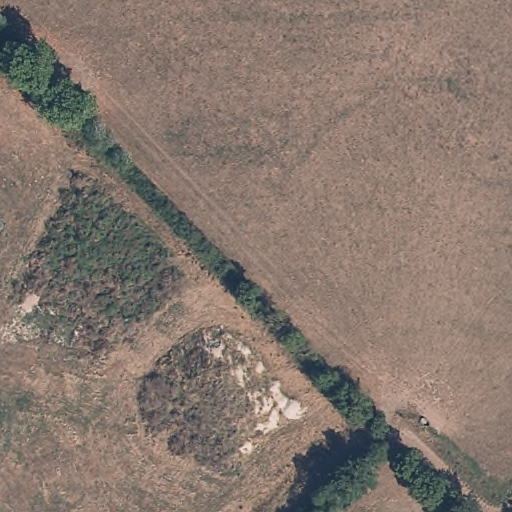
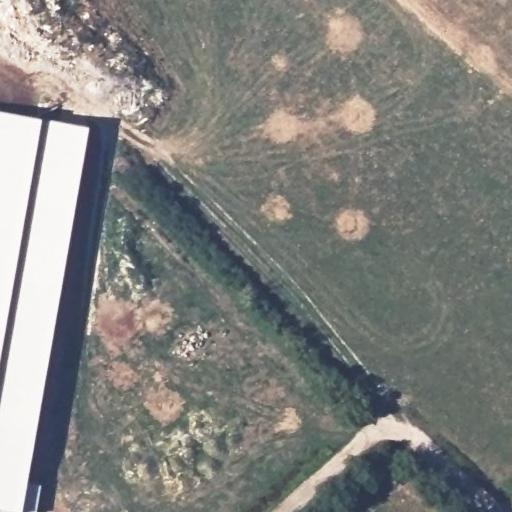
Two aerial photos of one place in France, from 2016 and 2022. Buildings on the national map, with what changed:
new [(89,127),(26,481),(39,483),(34,512),(25,512),(20,511),(20,512),(11,512),(0,510),(0,111),(89,127)]

